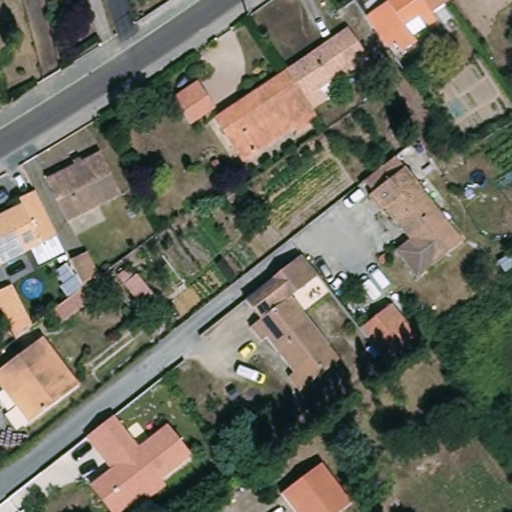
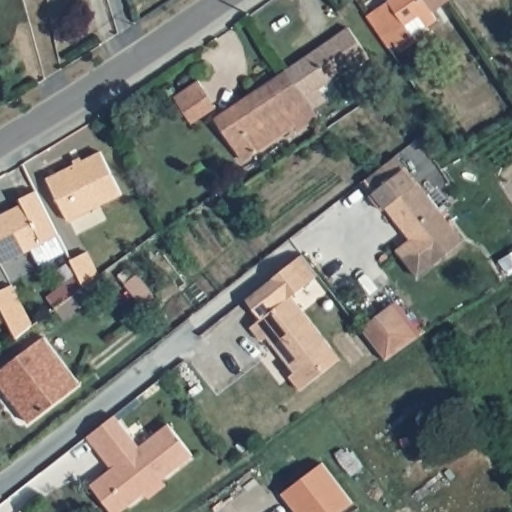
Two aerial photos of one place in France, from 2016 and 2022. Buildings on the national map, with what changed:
unchanged [(441,19),(431,26),(430,26),(417,36),(421,42),(406,52),(399,41),(392,47),(370,15),(394,0),(428,0),(441,19)]
unchanged [(331,99),(317,108),(290,70),(352,28),(372,58),(355,70),(354,68),(336,80),(344,90),(331,99)]
unchanged [(236,144),(218,118),(290,70),(317,108),(323,118),(302,132),(298,127),(258,154),(247,161),(236,144)]
unchanged [(220,107),(196,124),(178,97),(203,81),(220,107)]
unchanged [(467,241),(436,266),(421,277),(404,255),(404,247),(415,239),(390,208),(386,211),(374,195),(378,192),(368,180),(400,155),(409,167),(467,241)]
unchanged [(126,199),(72,226),(51,183),(105,156),(126,199)]
unchanged [(57,235),(0,264),(0,215),(22,204),(19,198),(35,190),(51,222),(57,235)]
unchanged [(99,276),(84,287),(70,260),(87,251),(99,276)]
unchanged [(271,329),(255,309),(311,265),(327,285),(300,306),(350,370),(310,401),(298,387),(304,383),(276,347),(274,349),(263,335),(271,329)]
unchanged [(156,300),(144,309),(126,284),(137,275),(156,300)]
unchanged [(15,339),(0,309),(0,290),(10,285),(31,326),(15,339)]
unchanged [(391,304),(417,337),(384,361),(380,355),(359,329),(391,304)]
unchanged [(0,349),(0,335),(4,346),(0,349)]
unchanged [(0,374),(48,337),(84,384),(33,423),(20,406),(7,389),(0,379),(0,374)]
unchanged [(100,477),(109,469),(85,438),(112,416),(137,448),(165,425),(190,457),(159,481),(162,486),(147,498),(143,494),(125,508),(121,512),(109,512),(88,486),(100,477)]
unchanged [(296,512),(281,493),(321,462),(352,502),(340,512),(296,512)]

